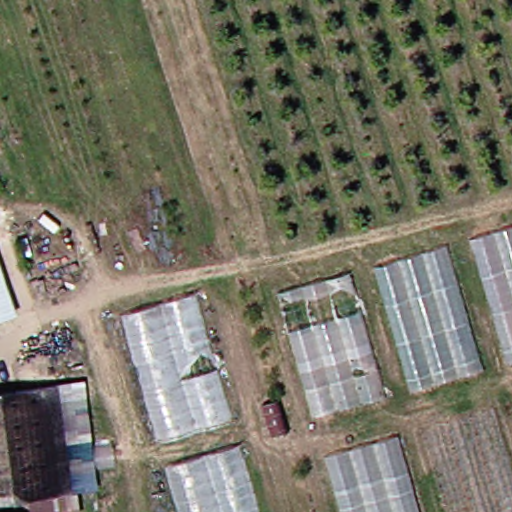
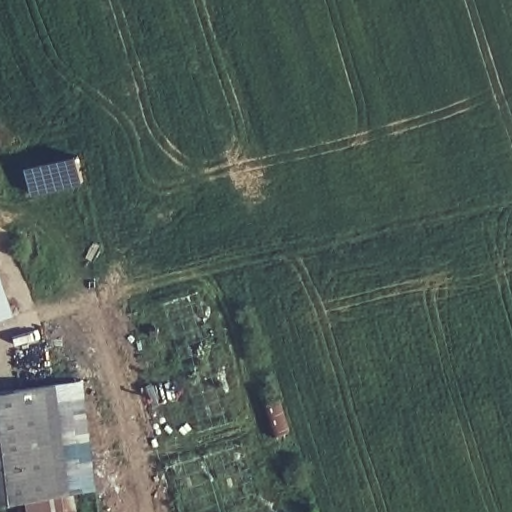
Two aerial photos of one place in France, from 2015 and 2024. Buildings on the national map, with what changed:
new [(34,193),(28,164),(77,154),(83,183),(34,193)]
demolished [(475,241),(512,228),(512,360),(509,361),(475,241)]
unchanged [(14,320),(0,323),(0,247),(14,320)]
demolished [(377,267),(446,247),(483,371),(414,391),(377,267)]
demolished [(351,275),(388,396),(317,415),(280,295),(351,275)]
demolished [(127,313),(195,292),(232,420),(164,442),(127,313)]
unchanged [(83,512),(34,512),(33,500),(0,504),(0,393),(63,386),(75,489),(80,489),(83,512)]
demolished [(512,512),(451,512),(427,430),(496,410),(512,463),(512,512)]
demolished [(398,439),(422,512),(343,512),(327,458),(398,439)]
demolished [(239,446),(260,512),(183,512),(168,466),(239,446)]

